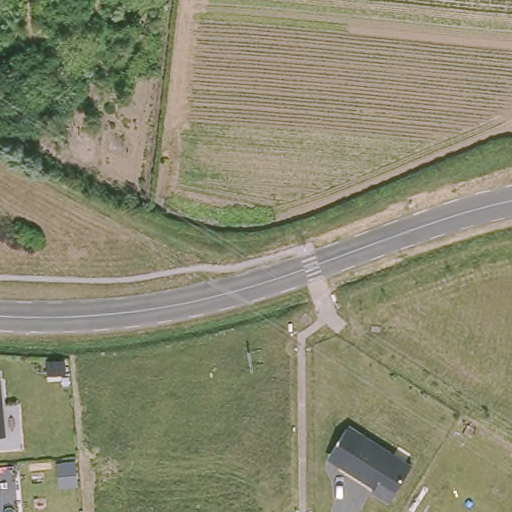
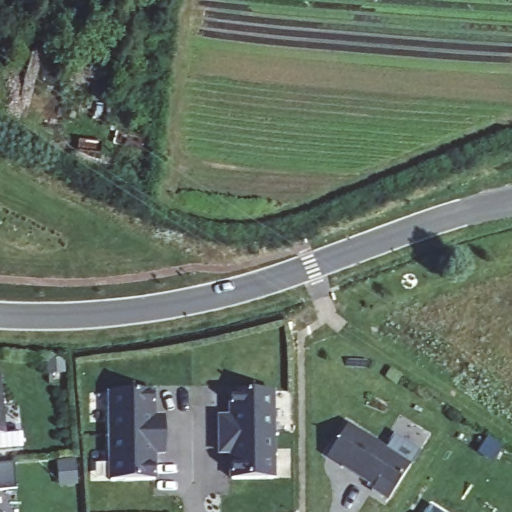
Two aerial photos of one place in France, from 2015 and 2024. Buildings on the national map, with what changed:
new [(273,477),(231,477),(231,457),(219,456),(218,416),(231,415),(231,393),(272,391),(273,477)]
new [(110,392),(155,392),(156,417),(167,418),(167,453),(155,453),(157,481),(110,481),(110,392)]
unchanged [(3,437),(0,437),(0,404),(3,437)]
unchanged [(393,437),(418,452),(410,466),(387,501),(371,491),(374,487),(342,467),(344,464),(330,456),(346,430),(360,439),(362,436),(385,450),(393,437)]

